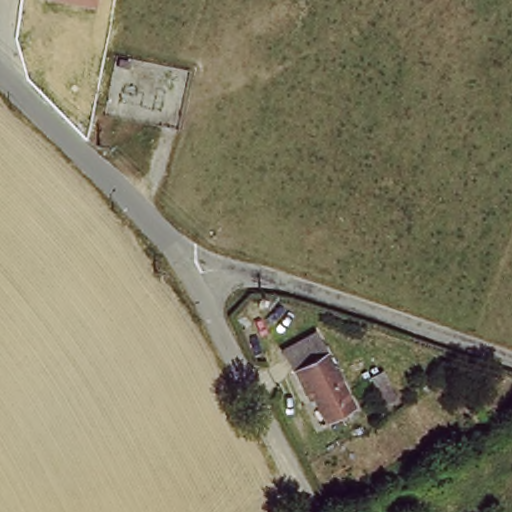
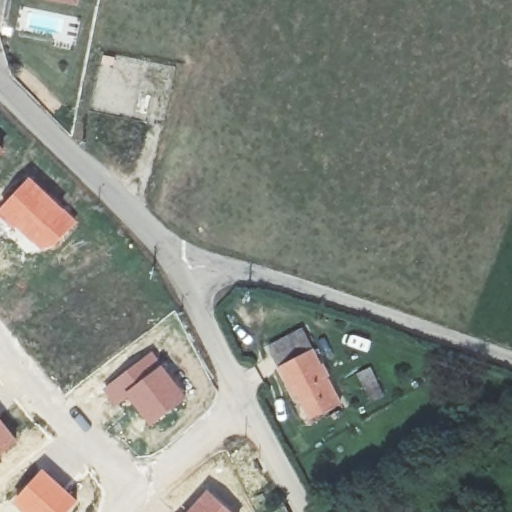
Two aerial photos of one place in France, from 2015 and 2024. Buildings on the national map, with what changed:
unchanged [(81,4),(55,0),(81,0),(81,4)]
new [(0,155),(0,145),(5,150),(0,155)]
new [(77,220),(44,253),(0,215),(0,207),(30,175),(77,220)]
unchanged [(294,385),(288,388),(267,350),(299,333),(336,405),(312,417),(294,385)]
new [(152,350),(187,396),(151,426),(128,398),(116,407),(102,388),(152,350)]
new [(0,455),(0,418),(19,440),(0,455)]
new [(79,500),(68,512),(25,512),(12,500),(44,467),(79,500)]
new [(230,512),(183,512),(207,490),(230,512)]

